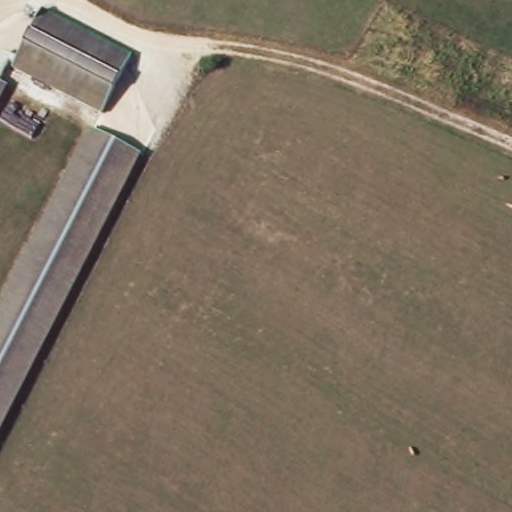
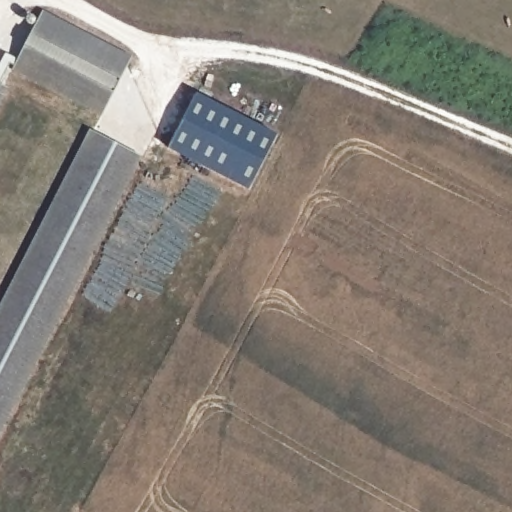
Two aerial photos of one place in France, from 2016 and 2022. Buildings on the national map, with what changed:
unchanged [(34,74),(16,65),(44,11),(62,20),(34,74)]
unchanged [(63,90),(34,74),(62,20),(91,35),(63,90)]
unchanged [(106,113),(101,110),(63,90),(91,35),(130,56),(135,59),(106,113)]
unchanged [(9,79),(0,96),(0,75),(9,79)]
new [(168,149),(197,91),(278,135),(249,191),(168,149)]
unchanged [(0,426),(0,318),(43,235),(100,128),(145,152),(86,261),(8,411),(0,426)]

